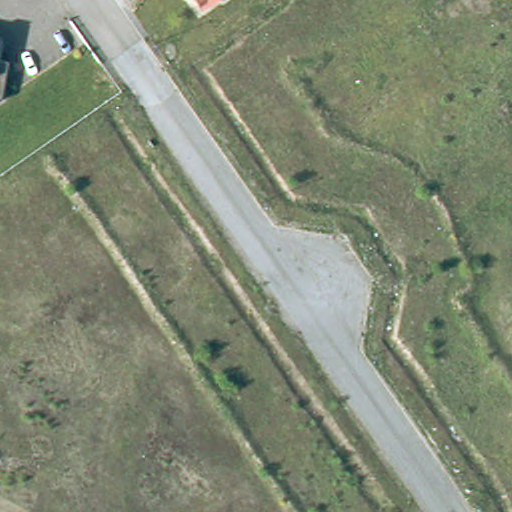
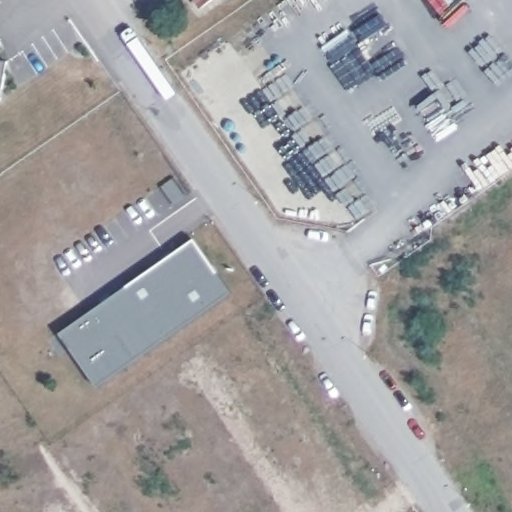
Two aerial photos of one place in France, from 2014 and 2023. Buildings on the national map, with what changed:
unchanged [(193,0),(214,0),(200,10),(193,0)]
unchanged [(8,62),(0,100),(0,61),(8,62)]
new [(233,293),(96,387),(59,333),(194,239),(233,293)]

